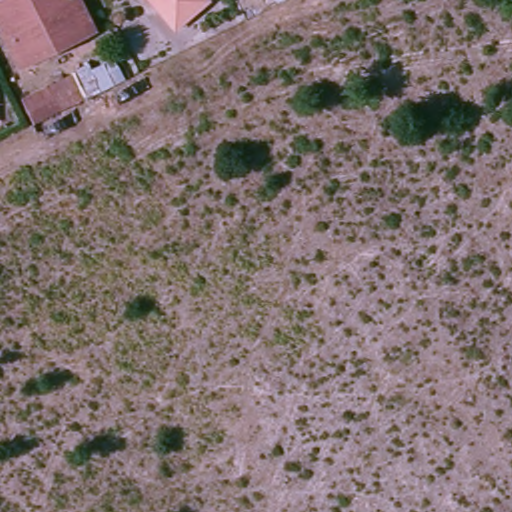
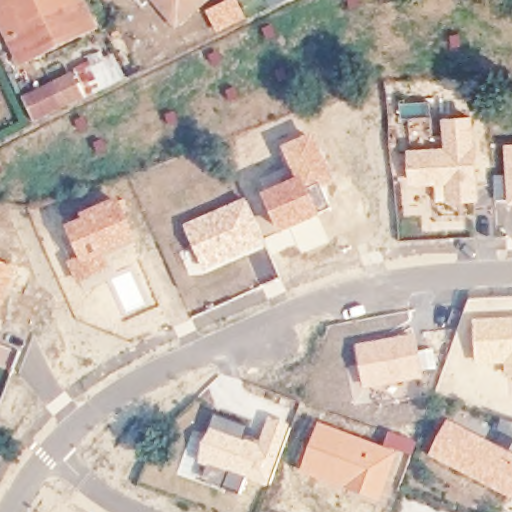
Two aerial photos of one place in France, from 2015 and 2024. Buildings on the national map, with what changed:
unchanged [(14,47),(0,19),(0,4),(8,0),(76,0),(92,33),(37,60),(24,67),(14,47)]
unchanged [(210,1),(173,32),(155,10),(146,0),(210,0),(210,1)]
new [(24,97),(73,73),(71,69),(89,62),(87,58),(101,51),(105,58),(114,54),(127,78),(36,123),(24,97)]
demolished [(40,126),(29,103),(68,85),(79,107),(40,126)]
new [(445,146),(443,117),(475,116),(479,201),(436,202),(435,185),(410,186),(407,149),(445,146)]
new [(300,253),(291,234),(280,238),(262,196),(296,181),(282,148),(315,134),(336,184),(325,189),(332,210),(320,216),(322,221),(329,241),(300,253)]
new [(507,143),(512,143),(512,205),(509,205),(507,143)]
new [(82,220),(80,216),(121,199),(137,243),(106,256),(111,271),(77,286),(67,263),(78,258),(66,227),(82,220)]
new [(266,245),(205,272),(185,226),(247,200),(266,245)]
new [(16,269),(0,310),(0,263),(16,269)]
new [(480,363),(477,322),(512,320),(512,396),(510,361),(480,363)]
new [(427,379),(366,390),(357,345),(417,334),(427,379)]
new [(251,427),(247,439),(261,445),(270,417),(291,425),(269,487),(246,479),(241,494),(224,487),(228,474),(198,465),(211,433),(209,432),(215,415),(251,427)]
new [(316,422),(382,447),(387,431),(417,442),(412,457),(398,452),(378,504),(297,474),(316,422)]
new [(512,494),(436,456),(452,423),(512,455),(512,494)]

